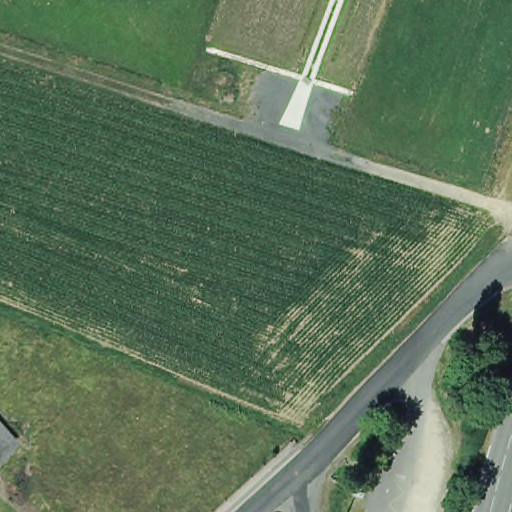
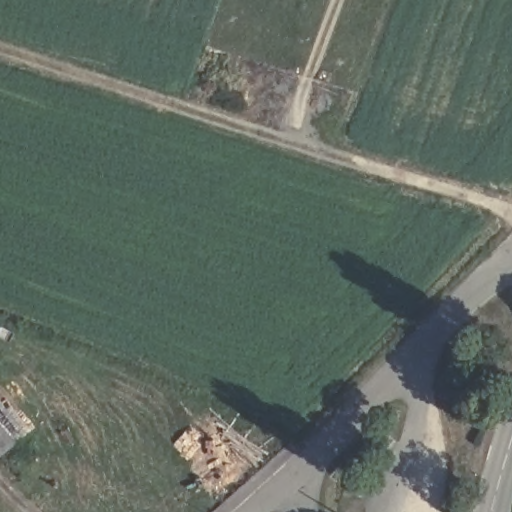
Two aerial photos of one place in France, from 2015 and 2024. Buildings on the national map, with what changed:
unchanged [(0,455),(0,428),(13,443),(0,455)]

